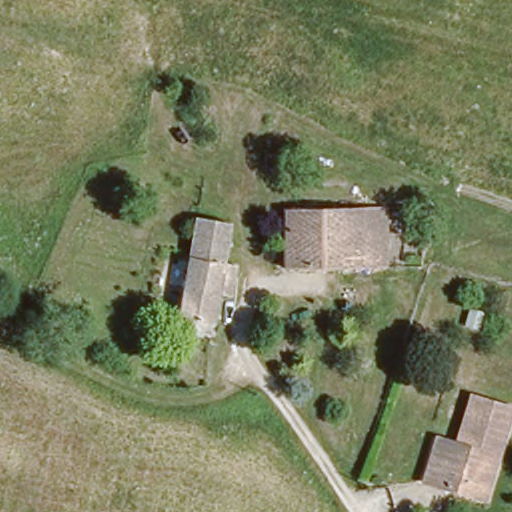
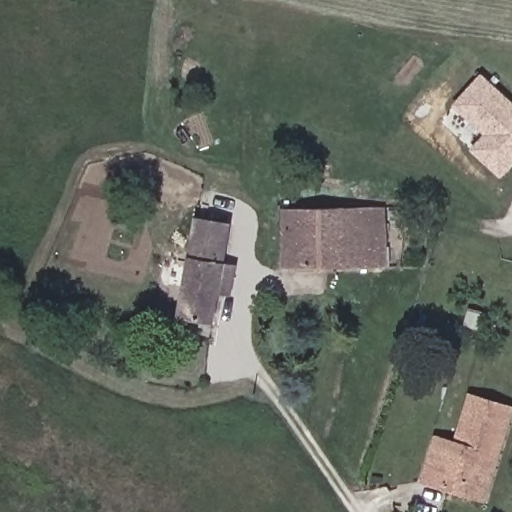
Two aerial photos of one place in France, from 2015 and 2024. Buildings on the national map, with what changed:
new [(480,135),(464,106),(486,81),(512,104),(512,167),(501,179),(469,150),(480,135)]
unchanged [(380,209),(378,267),(279,268),(281,210),(380,209)]
unchanged [(195,257),(201,219),(234,224),(228,262),(195,257)]
unchanged [(184,319),(195,257),(228,262),(240,264),(237,280),(226,279),(217,325),(184,319)]
unchanged [(439,487),(418,481),(431,435),(452,441),(466,393),(508,406),(484,487),(481,498),(439,487)]

